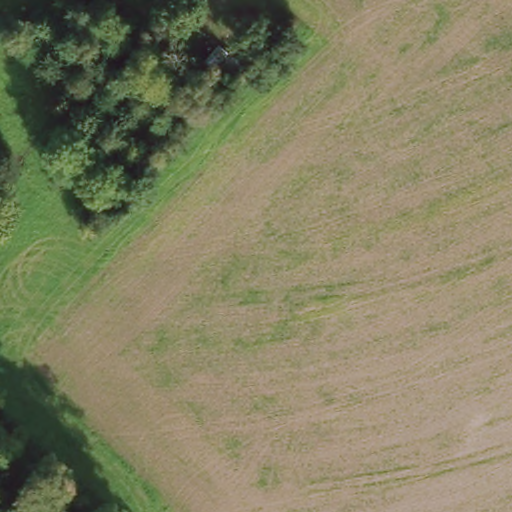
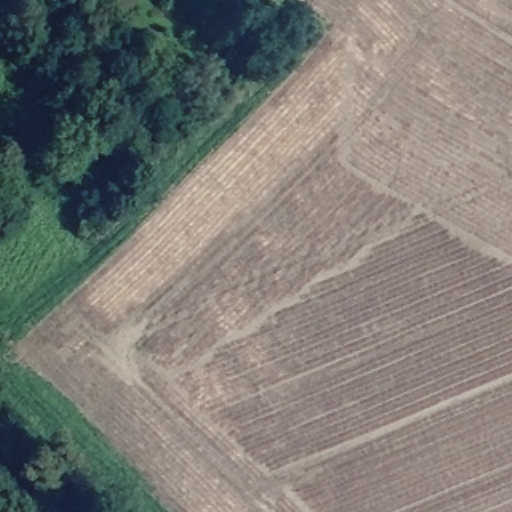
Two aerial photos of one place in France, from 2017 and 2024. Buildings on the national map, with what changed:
unchanged [(241,61),(226,80),(215,70),(230,52),(241,61)]

